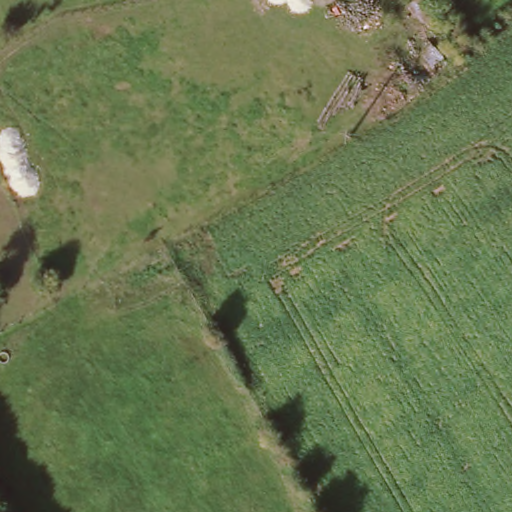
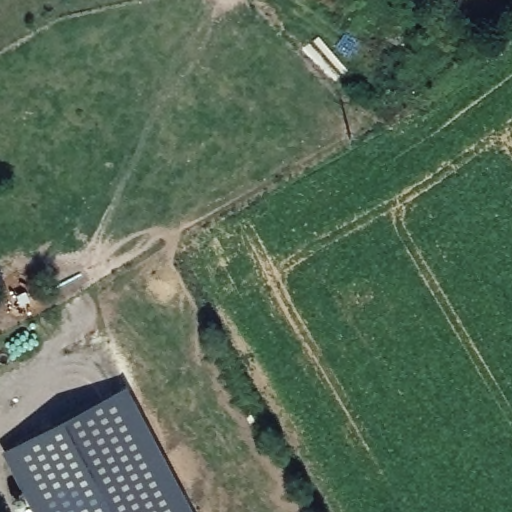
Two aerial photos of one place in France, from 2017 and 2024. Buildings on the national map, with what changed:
new [(108,398),(120,391),(184,512),(36,512),(5,452),(108,398)]

